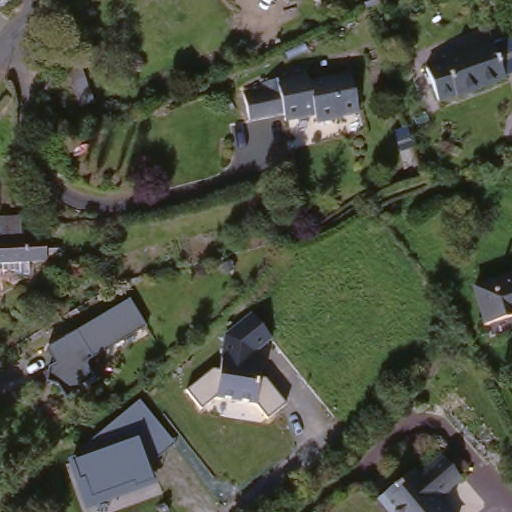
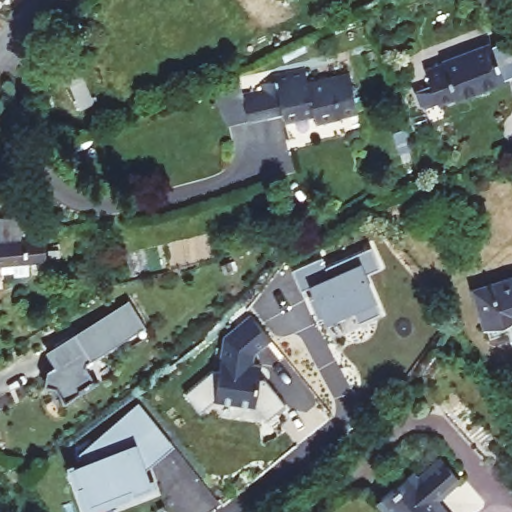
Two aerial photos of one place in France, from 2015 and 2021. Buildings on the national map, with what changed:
unchanged [(0,0),(5,0),(3,2),(0,0)]
unchanged [(508,0),(497,4),(484,9),(481,0),(508,0)]
unchanged [(453,103),(453,100),(435,105),(425,75),(440,69),(439,64),(489,49),(500,85),(453,103)]
unchanged [(79,101),(66,64),(83,57),(96,95),(79,101)]
unchanged [(283,122),(282,117),(264,119),(249,120),(248,95),(270,90),(269,83),(277,82),(278,77),(308,73),(311,83),(353,78),(358,111),(340,116),(341,120),(317,123),(315,118),(290,121),(283,122)]
unchanged [(396,155),(388,132),(406,126),(414,149),(396,155)]
unchanged [(12,271),(1,271),(0,264),(0,239),(0,218),(21,216),(23,240),(44,240),(45,260),(29,263),(30,276),(12,277),(12,271)]
unchanged [(50,255),(49,239),(63,238),(63,254),(50,255)]
new [(321,325),(313,328),(304,307),(316,302),(313,293),(296,299),(288,278),(319,266),(322,276),(368,257),(376,278),(361,284),(376,323),(354,332),(347,317),(321,327),(321,325)]
unchanged [(485,323),(475,286),(512,276),(512,315),(485,323)]
unchanged [(101,387),(70,405),(59,390),(46,385),(54,372),(61,369),(51,353),(133,305),(148,329),(91,367),(101,387)]
unchanged [(267,418),(254,404),(214,399),(201,411),(186,393),(214,371),(218,372),(225,337),(252,316),(270,340),(251,355),(251,365),(262,366),(261,375),(283,403),(267,418)]
unchanged [(86,509),(70,462),(98,452),(90,442),(138,403),(173,445),(147,469),(153,488),(86,509)]
unchanged [(465,482),(443,502),(451,512),(392,512),(385,504),(418,476),(421,481),(447,462),(465,482)]

